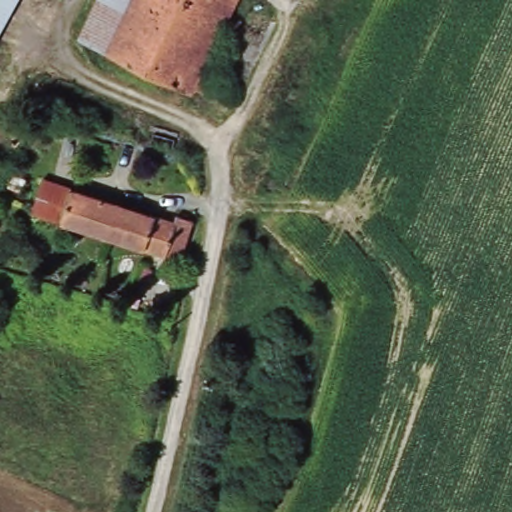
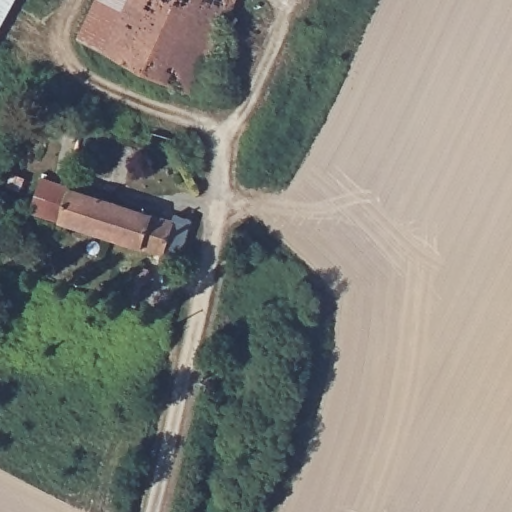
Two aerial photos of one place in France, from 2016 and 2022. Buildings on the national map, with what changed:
unchanged [(0,23),(0,0),(12,0),(0,23)]
unchanged [(95,0),(129,0),(104,53),(76,40),(95,0)]
unchanged [(217,61),(202,95),(191,90),(189,94),(104,53),(129,0),(234,0),(207,57),(217,61)]
unchanged [(41,175),(172,224),(176,212),(193,220),(174,270),(159,265),(161,256),(29,206),(41,175)]

